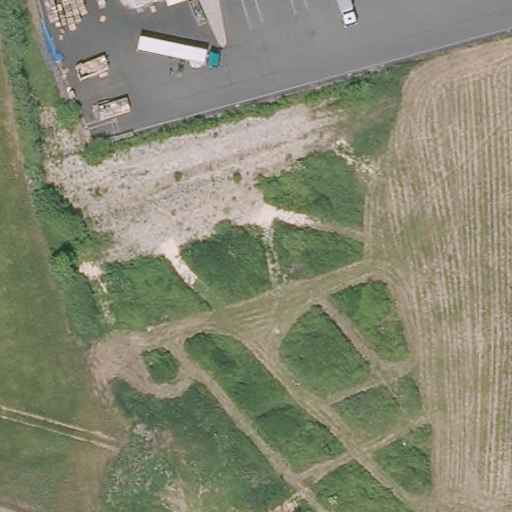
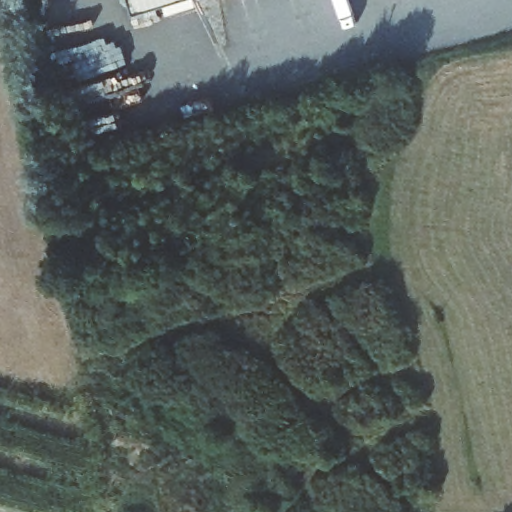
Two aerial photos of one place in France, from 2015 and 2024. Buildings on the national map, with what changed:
unchanged [(135,6),(132,0),(155,0),(135,6)]

